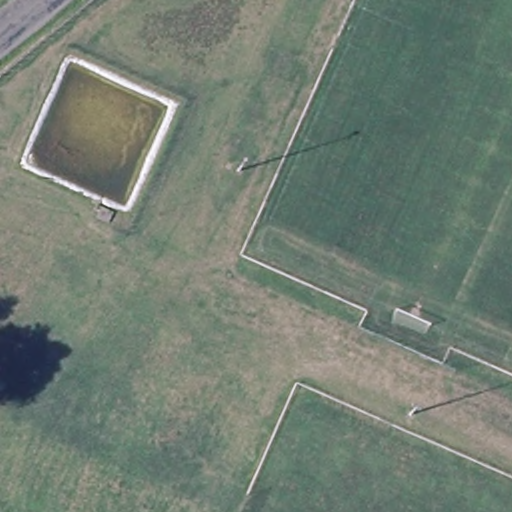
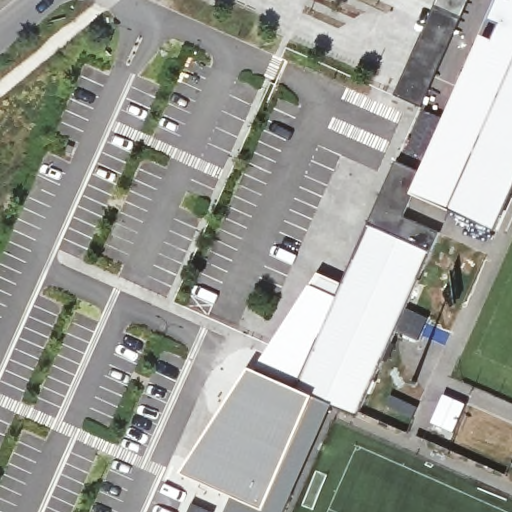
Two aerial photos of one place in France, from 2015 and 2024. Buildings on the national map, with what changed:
new [(340,291),(396,164),(424,175),(485,37),(496,42),(503,24),(494,18),(503,0),(510,0),(512,1),(512,199),(498,230),(415,195),(402,219),(437,234),(358,414),(332,405),(285,512),(227,512),(234,498),(183,473),(250,372),(303,293),(312,279),(340,291)]
new [(471,0),(461,20),(460,20),(433,9),(438,0),(471,0)]
new [(396,96),(433,9),(460,20),(420,107),(396,96)]

